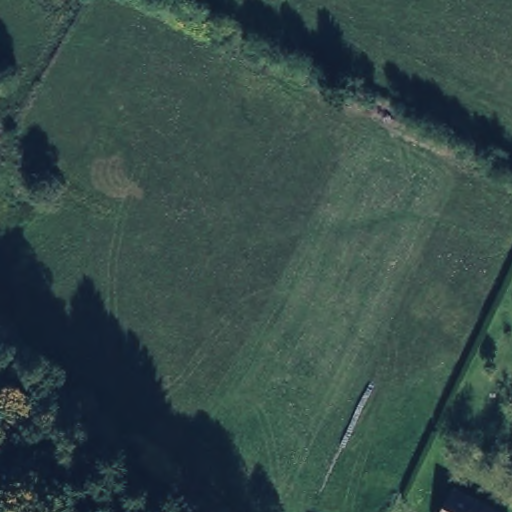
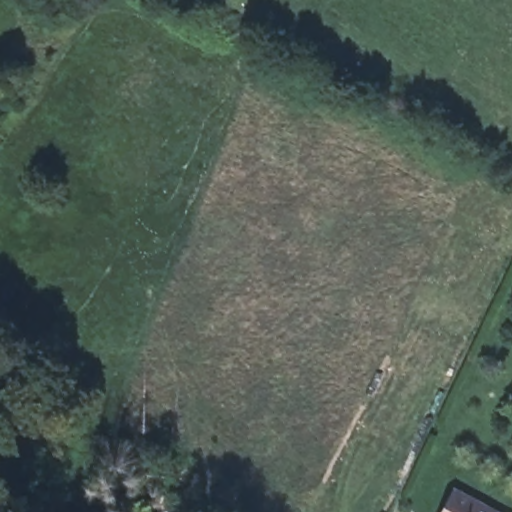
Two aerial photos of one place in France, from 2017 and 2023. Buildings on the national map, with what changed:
unchanged [(507,512),(440,512),(452,485),(507,512)]

